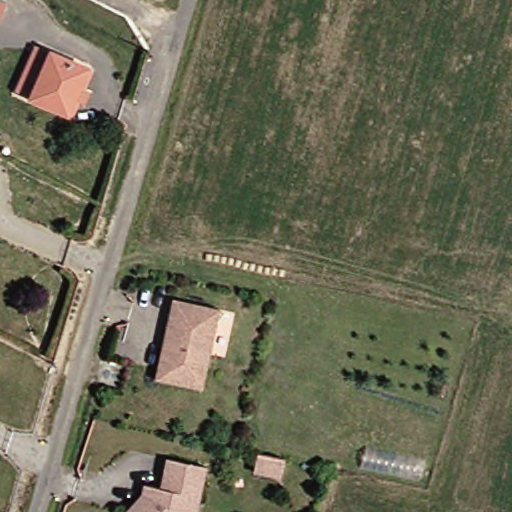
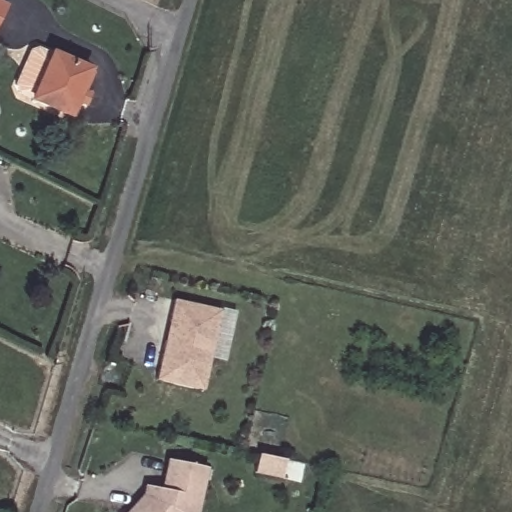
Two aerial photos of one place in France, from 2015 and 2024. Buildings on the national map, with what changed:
unchanged [(0,20),(0,0),(10,0),(11,0),(0,20)]
unchanged [(81,99),(71,95),(64,110),(27,94),(47,48),(84,64),(76,83),(86,88),(81,99)]
unchanged [(217,314),(200,393),(153,383),(162,343),(166,325),(171,303),(217,314)]
unchanged [(287,460),(282,480),(255,473),(259,454),(287,460)]
unchanged [(136,510),(149,495),(152,486),(157,487),(168,489),(175,459),(214,467),(207,499),(204,512),(134,512),(136,510)]

